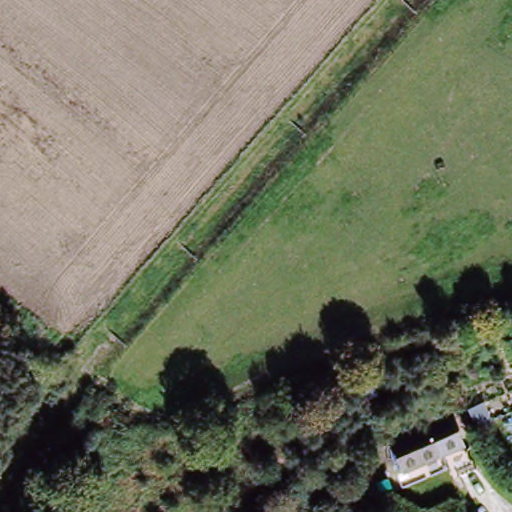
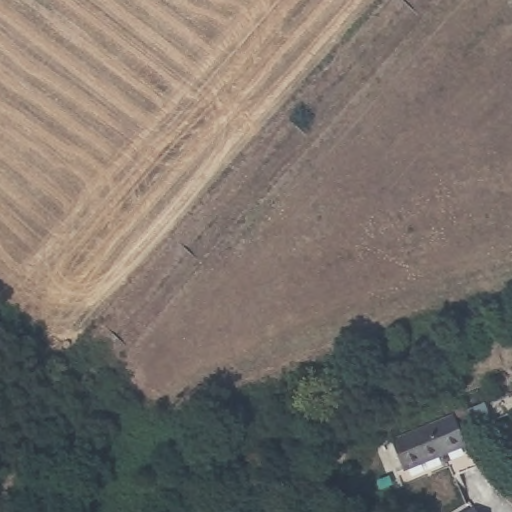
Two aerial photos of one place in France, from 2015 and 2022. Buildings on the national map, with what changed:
unchanged [(393,442),(457,420),(471,448),(403,471),(393,442)]

